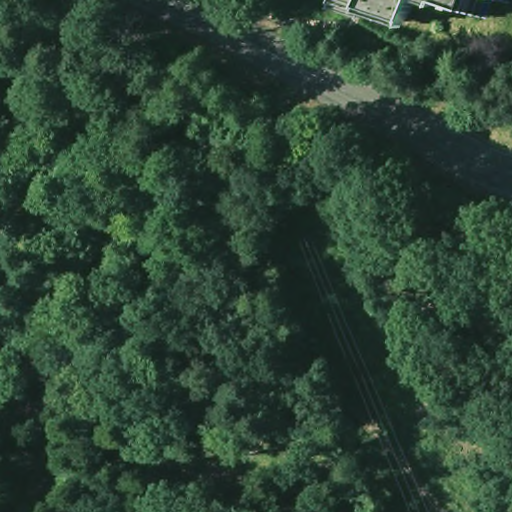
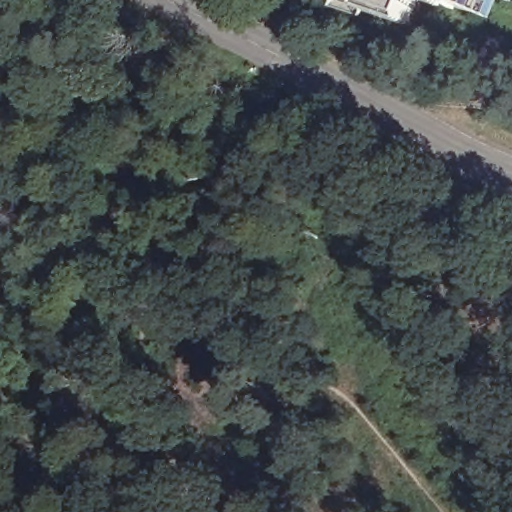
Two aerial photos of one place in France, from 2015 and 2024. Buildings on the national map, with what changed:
unchanged [(370,15),(367,20),(336,10),(340,0),(422,0),(413,27),(370,15)]
unchanged [(489,1),(480,21),(441,9),(441,5),(425,0),(512,0),(509,8),(489,1)]

